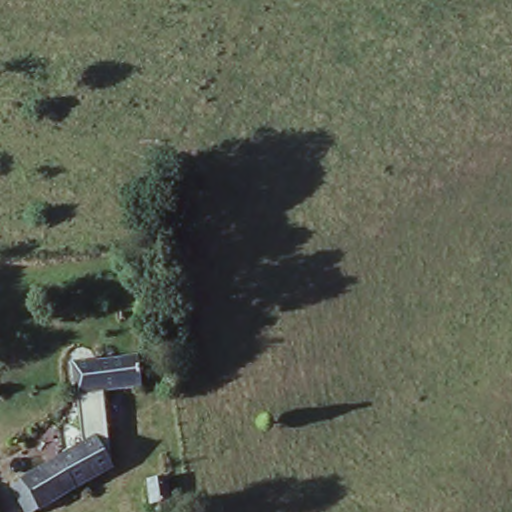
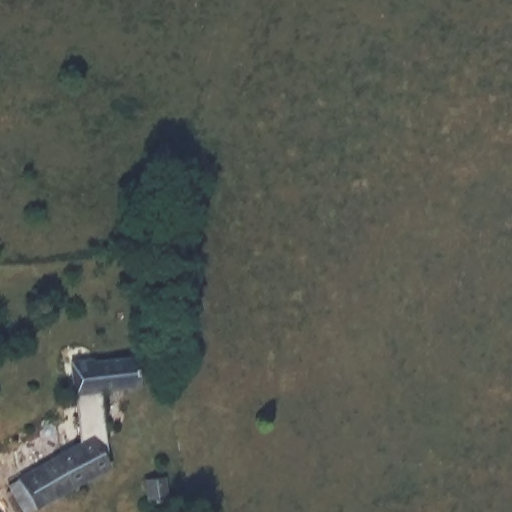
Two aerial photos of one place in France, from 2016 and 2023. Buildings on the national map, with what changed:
unchanged [(91,359),(90,364),(131,356),(136,390),(72,395),(67,362),(91,359)]
unchanged [(69,452),(63,439),(87,425),(110,466),(30,512),(25,512),(11,485),(69,452)]
unchanged [(162,501),(161,509),(160,512),(154,512),(151,506),(146,481),(168,479),(171,502),(162,501)]

